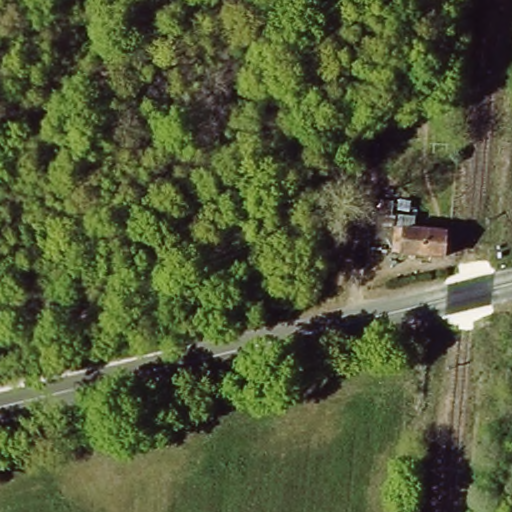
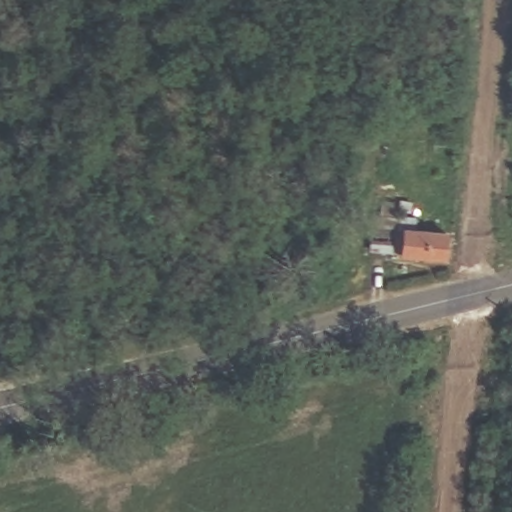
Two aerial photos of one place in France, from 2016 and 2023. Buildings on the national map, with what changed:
unchanged [(400,241),(400,237),(438,239),(436,265),(398,262),(398,256),(383,255),(384,240),(400,241)]

